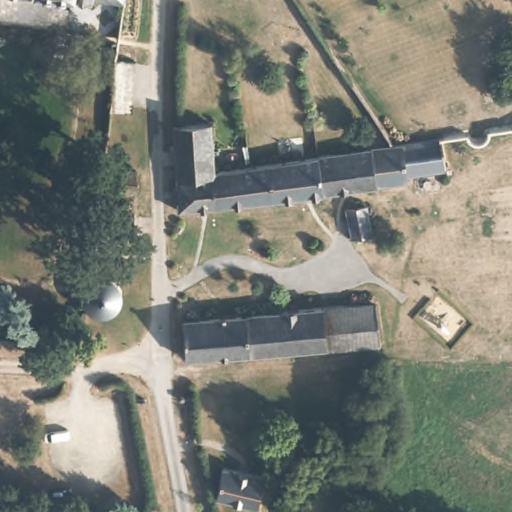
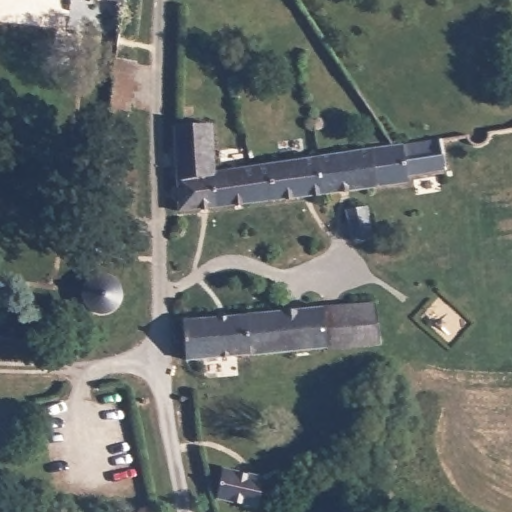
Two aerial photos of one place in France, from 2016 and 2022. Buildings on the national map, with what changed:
unchanged [(135,51),(133,108),(116,107),(121,51),(135,51)]
unchanged [(216,124),(218,169),(371,149),(373,184),(179,209),(173,126),(216,124)]
unchanged [(371,149),(442,139),(446,168),(407,173),(408,180),(373,184),(371,149)]
unchanged [(119,185),(119,203),(98,201),(100,184),(119,185)]
unchanged [(347,237),(343,208),(365,205),(369,234),(347,237)]
unchanged [(136,239),(119,239),(117,261),(93,261),(96,223),(136,223),(136,239)]
unchanged [(191,312),(384,299),(386,341),(193,355),(191,312)]
unchanged [(222,466),(263,473),(259,505),(218,499),(222,466)]

